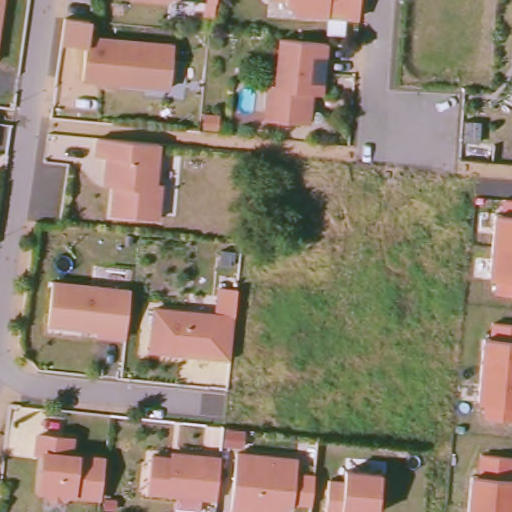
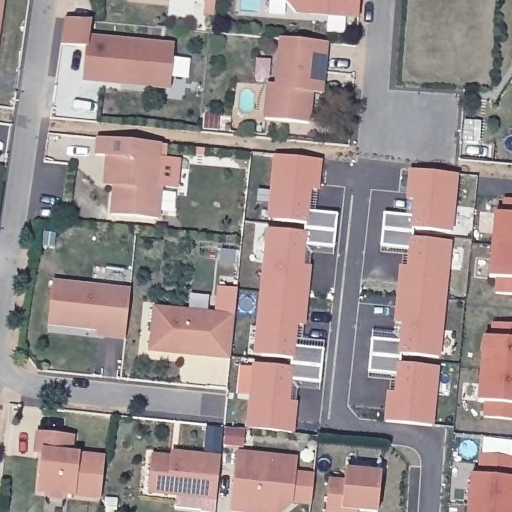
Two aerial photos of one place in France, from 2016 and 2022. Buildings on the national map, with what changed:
unchanged [(3,0),(0,27),(0,0),(3,0)]
unchanged [(296,15),(287,5),(287,1),(278,0),(362,0),(360,19),(296,15)]
unchanged [(92,17),(91,33),(178,39),(175,72),(87,66),(90,46),(64,42),(67,16),(92,17)]
unchanged [(318,94),(315,125),(265,120),(269,85),(277,86),(281,40),(333,44),(330,77),(328,95),(318,94)]
unchanged [(228,106),(227,120),(212,119),(214,105),(228,106)]
new [(479,138),(478,158),(462,157),(464,137),(479,138)]
unchanged [(161,147),(157,185),(163,186),(160,220),(113,216),(117,180),(107,172),(109,160),(97,159),(99,142),(161,147)]
new [(270,205),(276,156),(322,161),(319,191),(310,190),(307,212),(337,215),(336,232),(299,227),(300,223),(276,221),(269,220),(270,205)]
new [(384,215),(414,217),(415,201),(408,200),(411,171),(457,176),(451,233),(414,229),(413,234),(382,231),(384,215)]
unchanged [(498,277),(492,276),(497,212),(505,213),(505,200),(512,201),(512,296),(497,295),(498,277)]
new [(305,245),(302,267),(310,267),(307,297),(262,292),(267,245),(268,230),(275,231),(299,232),(299,227),(336,232),(334,248),(305,245)]
new [(413,234),(412,239),(450,242),(445,300),(399,295),(402,266),(409,266),(410,250),(381,247),(382,231),(406,232),(413,234)]
new [(232,266),(220,265),(222,250),(234,251),(232,266)]
unchanged [(127,292),(122,341),(101,338),(102,333),(53,330),(57,286),(127,292)]
unchanged [(220,288),(237,290),(235,316),(232,316),(230,330),(227,357),(147,351),(150,308),(217,315),(220,288)]
new [(257,340),(262,292),(307,297),(304,326),(296,326),(294,347),(324,350),(322,367),(292,363),(292,358),(262,355),(255,355),(257,340)]
new [(372,340),(402,342),(403,326),(396,325),(399,295),(445,300),(439,357),(402,354),(401,359),(370,357),(372,340)]
unchanged [(487,402),(479,402),(485,339),(492,339),(494,326),(512,328),(512,421),(485,417),(487,402)]
new [(401,359),(400,364),(438,367),(432,426),(387,422),(389,392),(397,393),(399,376),(369,372),(370,357),(401,359)]
new [(290,380),(289,402),(296,402),(293,433),(248,429),(253,378),(255,365),(261,365),(292,368),(292,363),(322,367),(320,383),(290,380)]
new [(242,447),(225,445),(227,430),(245,432),(242,447)]
unchanged [(102,490),(100,499),(68,496),(62,501),(52,500),(47,493),(41,493),(45,455),(39,453),(40,436),(73,439),(71,456),(105,458),(102,490)]
unchanged [(174,462),(175,457),(217,461),(212,502),(145,496),(149,460),(174,462)]
unchanged [(472,475),(480,475),(482,457),(512,460),(512,512),(469,512),(472,475)]
unchanged [(299,465),(294,510),(291,512),(233,512),(238,459),(299,465)]
unchanged [(384,475),(380,512),(359,512),(345,511),(344,512),(328,512),(331,481),(346,482),(347,471),(384,475)]

